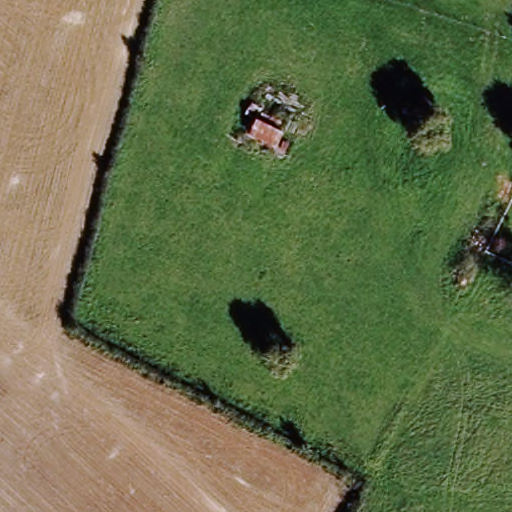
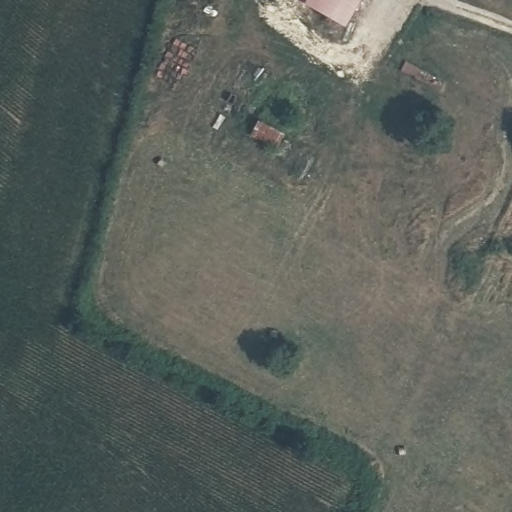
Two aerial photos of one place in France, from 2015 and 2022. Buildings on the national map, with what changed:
new [(343,23),(303,0),(358,0),(343,23)]
unchanged [(281,130),(258,115),(269,96),(293,110),(281,130)]

